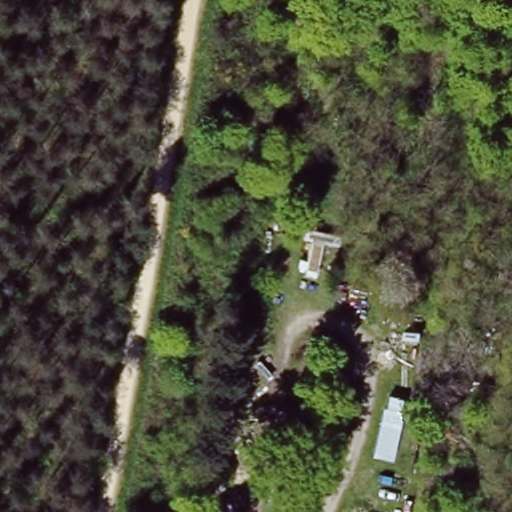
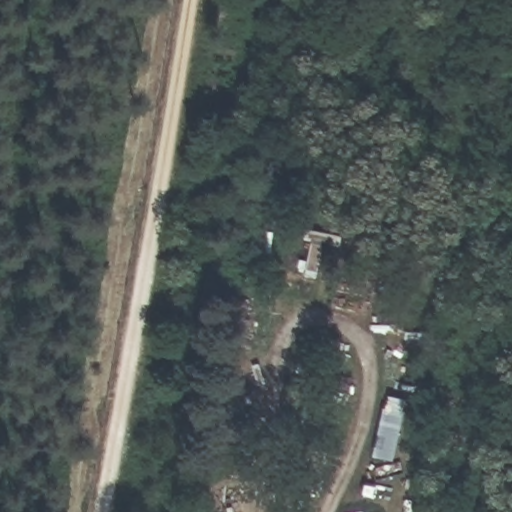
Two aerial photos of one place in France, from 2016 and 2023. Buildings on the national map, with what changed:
[]

